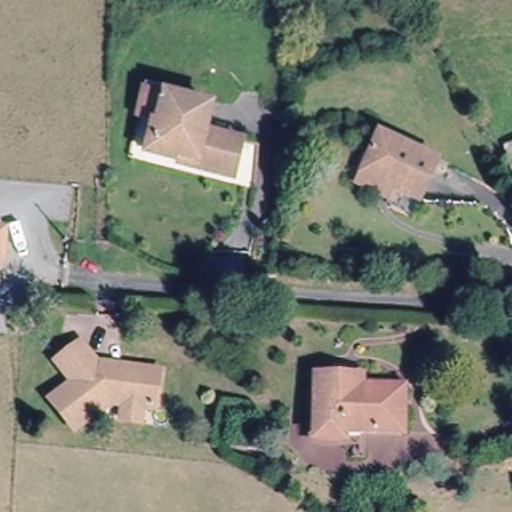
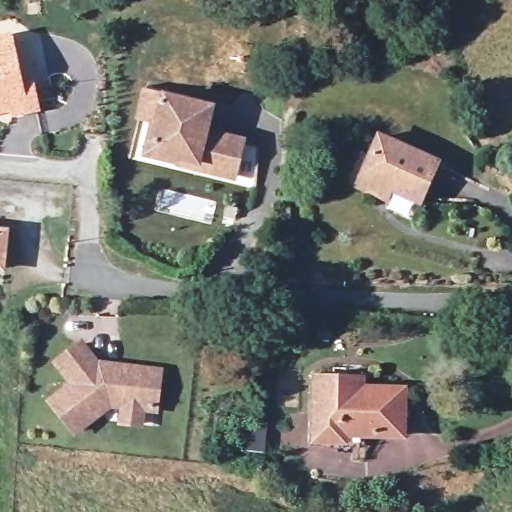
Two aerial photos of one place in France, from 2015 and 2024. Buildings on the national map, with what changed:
new [(13,32),(23,80),(34,78),(41,111),(14,118),(12,111),(0,114),(0,35),(13,32)]
unchanged [(175,165),(177,159),(149,152),(157,123),(134,117),(141,93),(163,99),(207,110),(201,135),(239,145),(232,174),(230,180),(175,165)]
unchanged [(353,190),(358,180),(374,141),(433,166),(417,203),(388,192),(383,203),(353,190)]
unchanged [(504,143),(512,142),(512,170),(509,171),(504,143)]
unchanged [(2,233),(0,250),(0,233),(2,233)]
unchanged [(98,360),(162,368),(159,415),(141,412),(140,426),(116,424),(118,409),(105,408),(74,434),(43,397),(65,378),(50,361),(81,339),(98,360)]
unchanged [(360,381),(360,389),(403,391),(402,436),(343,435),(343,441),(316,440),(318,381),(360,381)]
unchanged [(252,424),(249,440),(234,437),(236,422),(252,424)]

